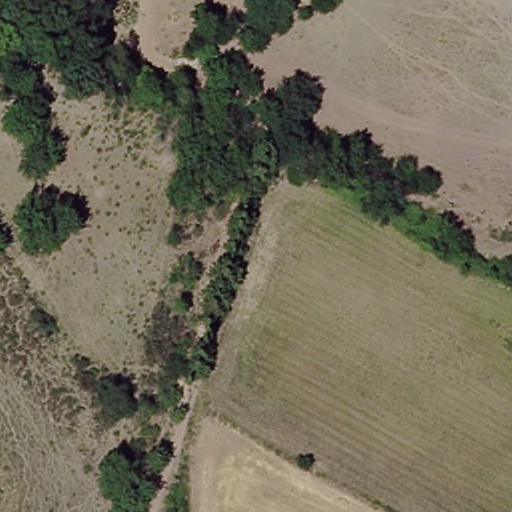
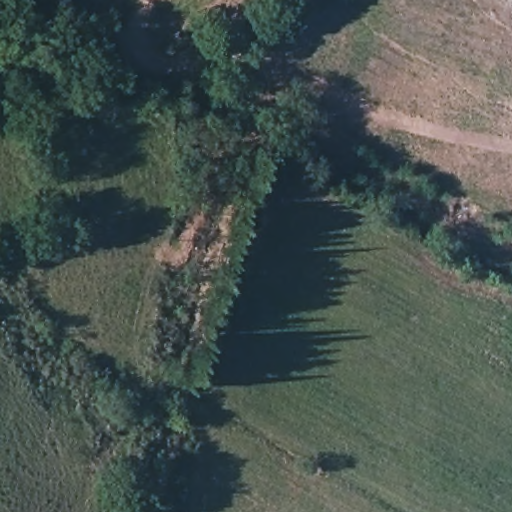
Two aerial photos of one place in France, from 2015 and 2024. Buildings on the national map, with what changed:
[]

